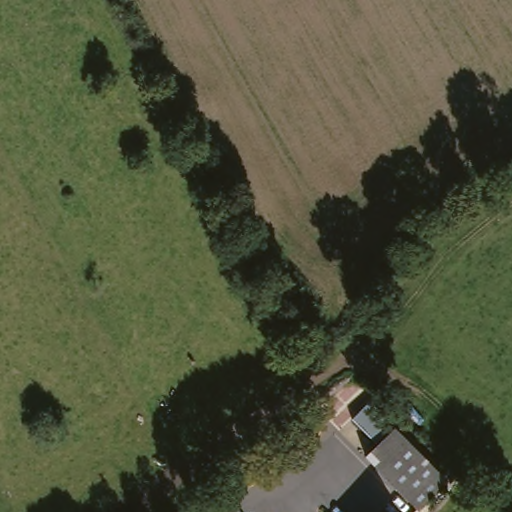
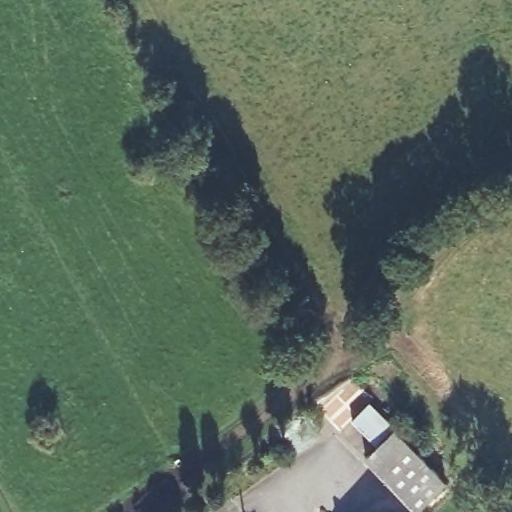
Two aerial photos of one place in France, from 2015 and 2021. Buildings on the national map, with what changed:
unchanged [(445,478),(415,506),(365,455),(393,427),(445,478)]

